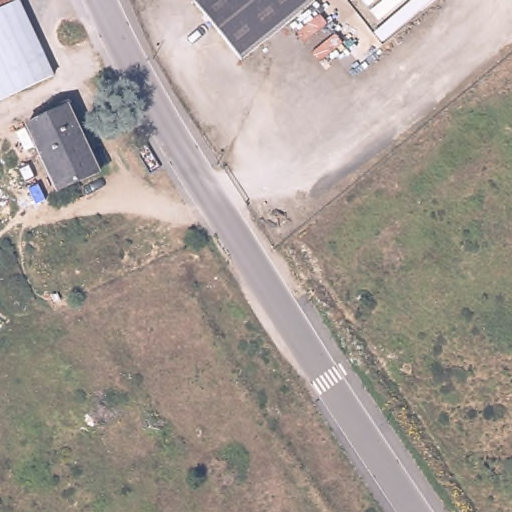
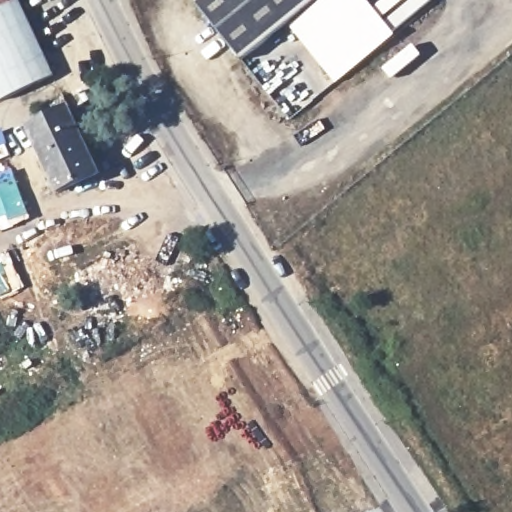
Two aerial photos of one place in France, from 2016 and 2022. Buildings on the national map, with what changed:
unchanged [(51,76),(0,100),(0,0),(16,0),(51,76)]
unchanged [(320,0),(243,63),(195,5),(201,0),(320,0)]
new [(289,25),(320,0),(366,0),(395,36),(335,83),(289,25)]
unchanged [(66,107),(97,174),(56,193),(26,127),(66,107)]

